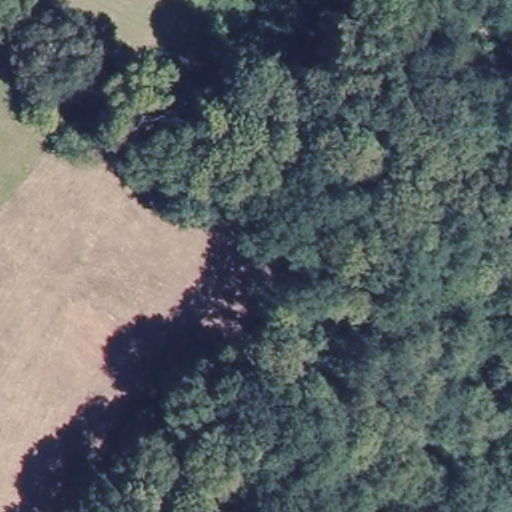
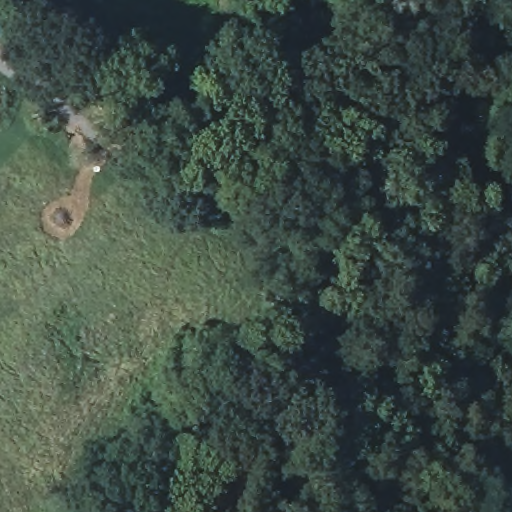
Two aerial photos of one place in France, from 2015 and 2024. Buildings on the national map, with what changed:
unchanged [(119,115),(148,141),(133,161),(105,136),(119,115)]

